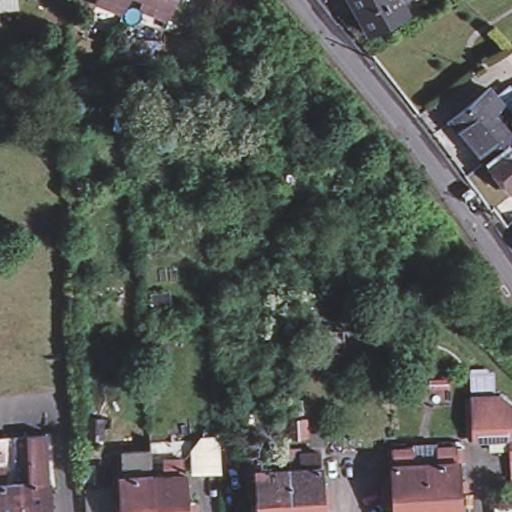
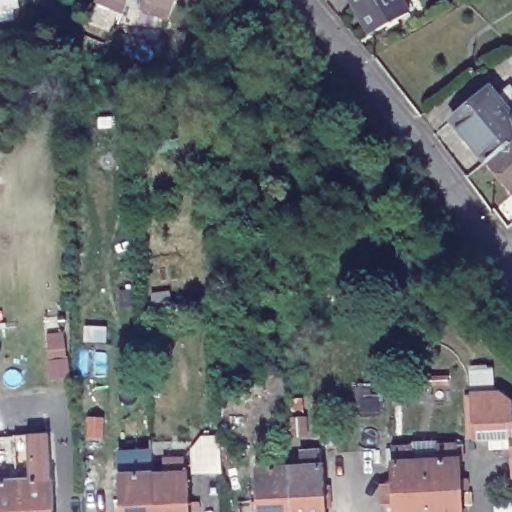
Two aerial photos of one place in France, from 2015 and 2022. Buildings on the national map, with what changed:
unchanged [(109,0),(130,0),(127,7),(109,0)]
unchanged [(144,3),(145,0),(177,0),(171,14),(144,3)]
unchanged [(217,0),(227,0),(225,3),(217,0)]
unchanged [(371,37),(351,0),(407,0),(415,14),(371,37)]
unchanged [(491,162),(458,120),(495,91),(512,112),(512,190),(491,162)]
unchanged [(510,389),(510,407),(512,437),(470,440),(469,390),(510,389)]
unchanged [(512,408),(512,452),(512,437),(510,407),(512,408)]
unchanged [(17,478),(30,477),(28,463),(17,464),(5,464),(0,465),(0,433),(17,432),(46,430),(48,462),(48,476),(51,476),(53,512),(0,512),(0,479),(5,479),(17,478)]
unchanged [(222,468),(205,468),(204,432),(220,431),(222,468)]
unchanged [(390,464),(394,464),(393,449),(412,448),(413,463),(437,462),(437,447),(455,446),(457,461),(459,460),(462,512),(392,512),(390,464)]
unchanged [(125,488),(130,488),(129,462),(157,461),(157,486),(169,485),(168,470),(188,469),(189,484),(192,484),(193,512),(126,512),(125,488)]
unchanged [(290,494),(289,464),(302,463),(321,462),(323,462),(325,493),(326,512),(291,512),(290,494)]
unchanged [(255,466),(258,465),(277,464),(289,464),(290,494),(257,496),(255,466)]
unchanged [(257,496),(290,494),(291,512),(258,512),(257,496)]

